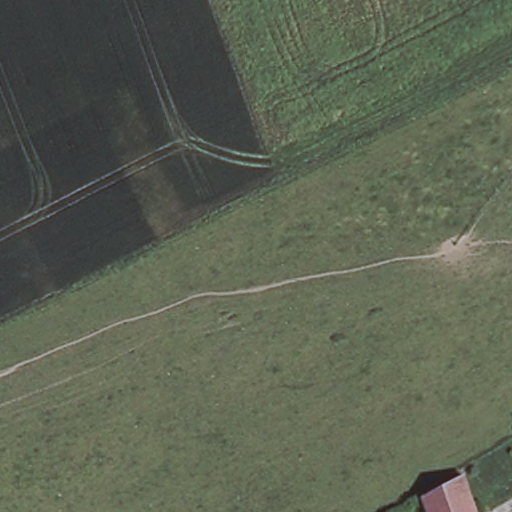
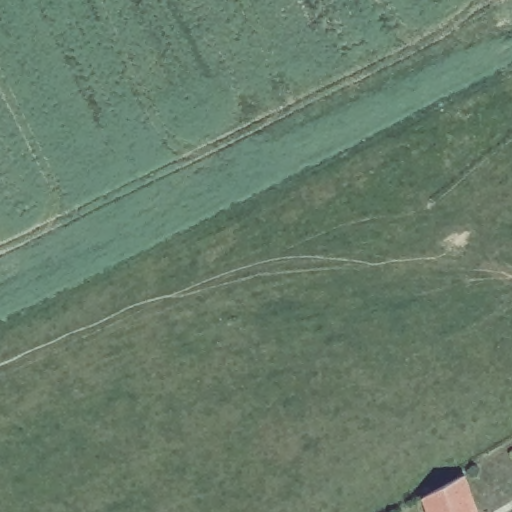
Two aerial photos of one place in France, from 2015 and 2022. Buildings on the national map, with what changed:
unchanged [(462,476),(474,511),(475,512),(428,512),(422,497),(462,476)]

